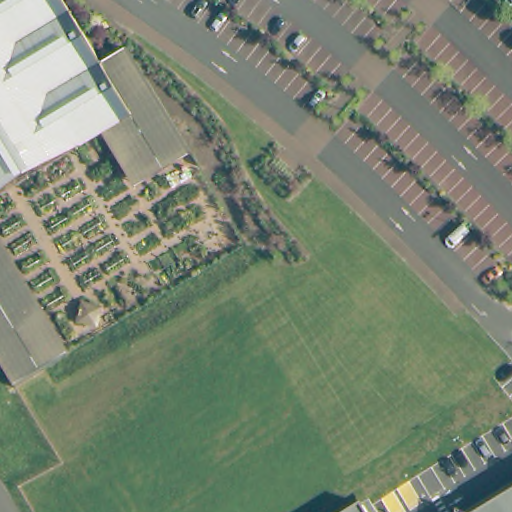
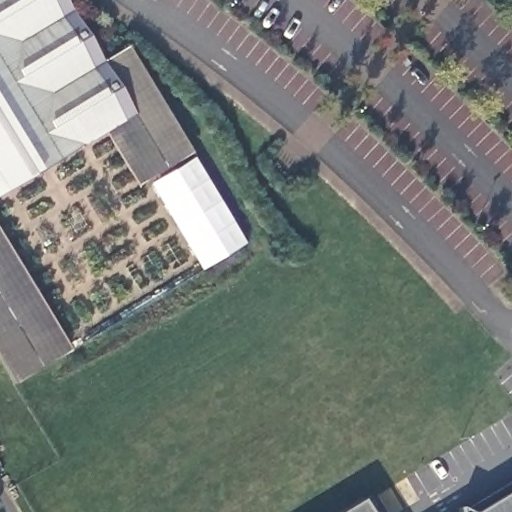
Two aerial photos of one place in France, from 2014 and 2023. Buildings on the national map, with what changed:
unchanged [(134,114),(108,129),(0,195),(0,0),(65,0),(103,62),(134,114)]
unchanged [(129,46),(191,149),(139,181),(108,129),(134,114),(103,62),(129,46)]
new [(191,149),(247,244),(201,270),(145,177),(191,149)]
unchanged [(0,242),(68,353),(15,385),(0,359),(0,242)]
unchanged [(512,490),(512,512),(476,512),(512,490)]
unchanged [(359,503),(368,497),(377,512),(344,512),(359,503)]

